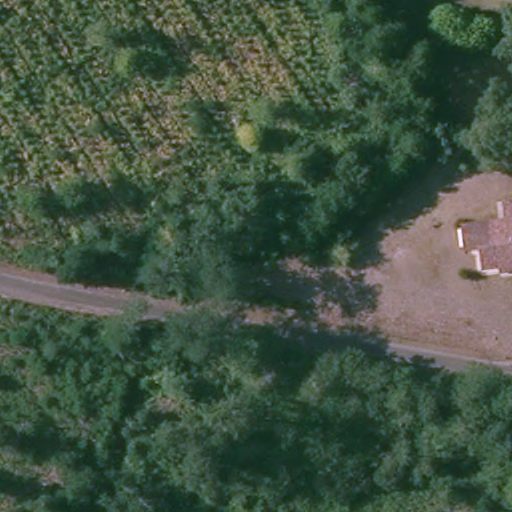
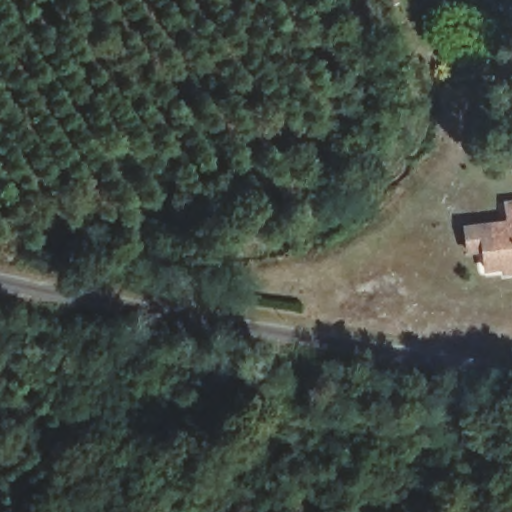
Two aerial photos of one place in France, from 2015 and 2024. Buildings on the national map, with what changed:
unchanged [(479,268),(478,254),(451,255),(450,224),(500,219),(500,205),(512,204),(512,267),(479,268)]

